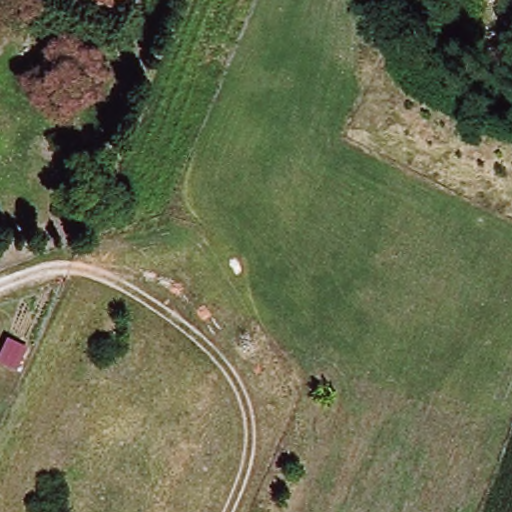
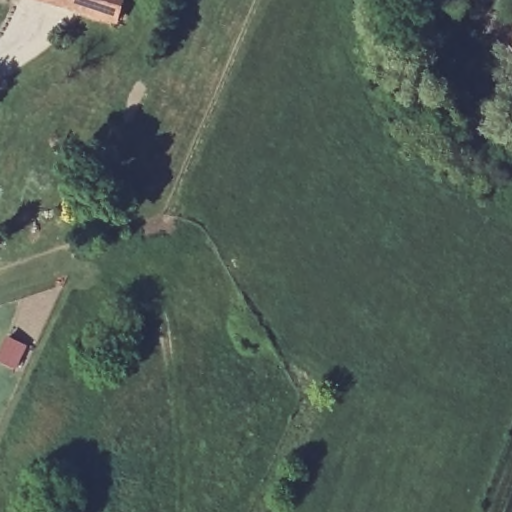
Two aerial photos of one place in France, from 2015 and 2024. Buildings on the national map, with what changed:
unchanged [(40,0),(123,0),(116,25),(40,0)]

